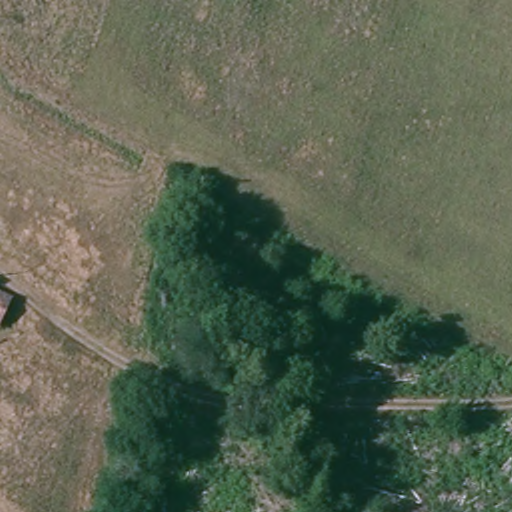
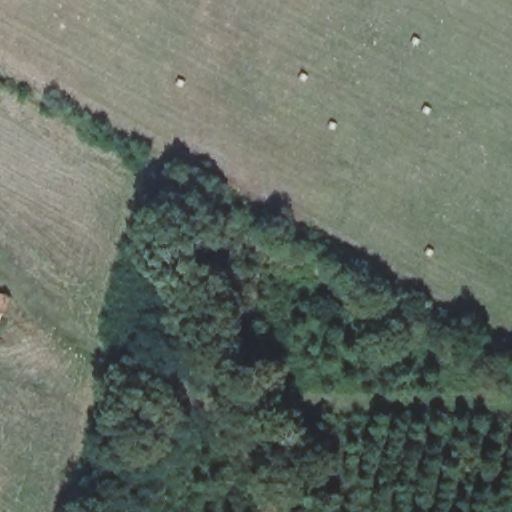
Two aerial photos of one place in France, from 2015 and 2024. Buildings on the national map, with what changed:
unchanged [(0,316),(0,293),(5,294),(0,316)]

